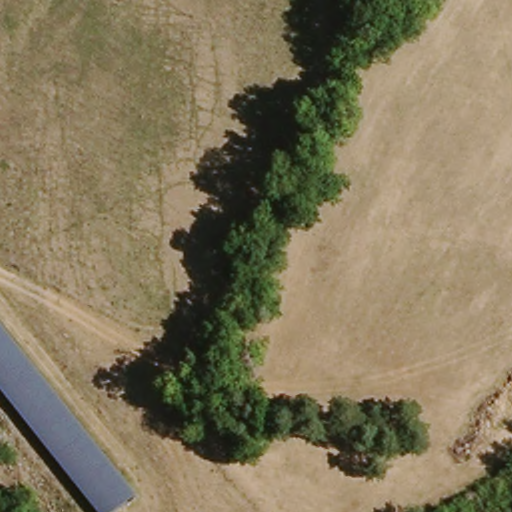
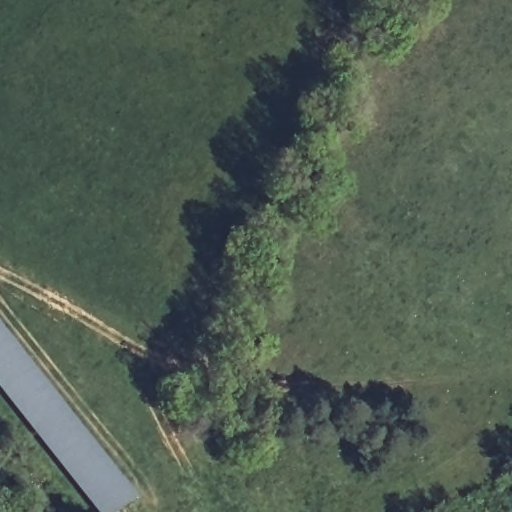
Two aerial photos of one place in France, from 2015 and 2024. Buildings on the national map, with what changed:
unchanged [(117,512),(93,512),(0,393),(0,328),(135,499),(117,512)]

